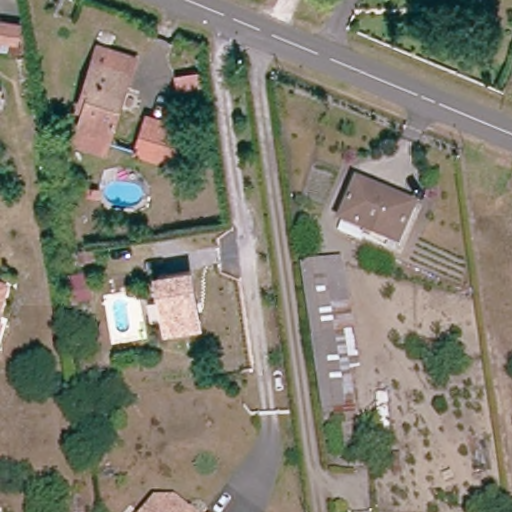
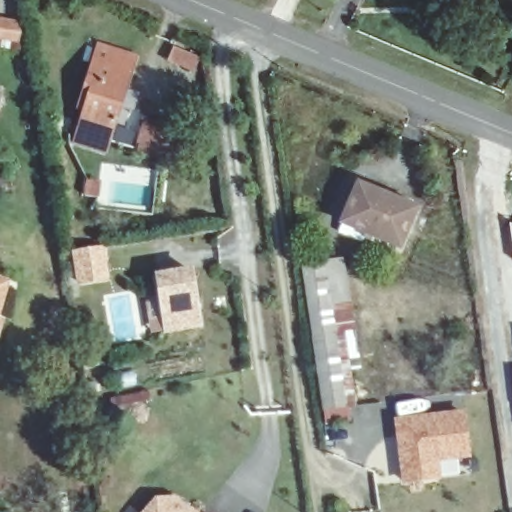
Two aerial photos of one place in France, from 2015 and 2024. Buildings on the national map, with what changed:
unchanged [(18,41),(0,38),(0,22),(20,26),(18,41)]
unchanged [(67,149),(81,104),(75,101),(85,67),(90,52),(130,64),(126,79),(102,159),(67,149)]
demolished [(0,107),(0,85),(2,85),(0,107)]
unchanged [(159,121),(185,130),(175,153),(162,147),(166,139),(154,134),(159,121)]
unchanged [(355,189),(360,191),(363,186),(408,205),(406,210),(413,213),(396,252),(340,229),(355,189)]
new [(510,221),(512,221),(512,241),(510,221)]
unchanged [(300,264),(342,260),(348,305),(335,307),(327,308),(331,337),(311,338),(300,264)]
unchanged [(189,270),(197,325),(165,330),(155,275),(189,270)]
unchanged [(0,298),(0,284),(4,285),(0,298)]
unchanged [(351,410),(322,414),(312,341),(311,338),(331,337),(327,308),(335,307),(341,345),(351,410)]
new [(435,478),(401,482),(400,459),(403,458),(403,452),(399,452),(396,420),(462,414),(466,457),(449,458),(434,460),(435,478)]
unchanged [(175,512),(154,512),(174,511),(175,512)]

